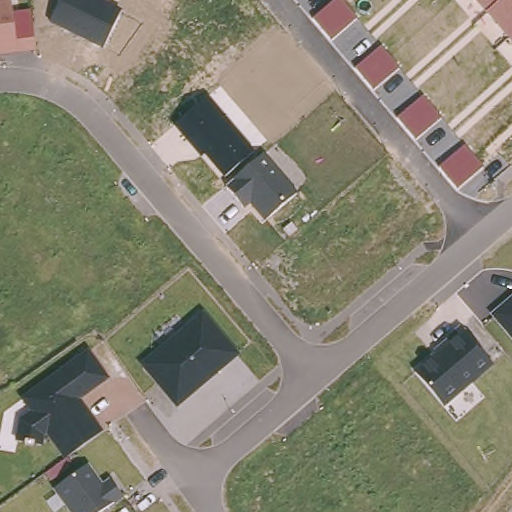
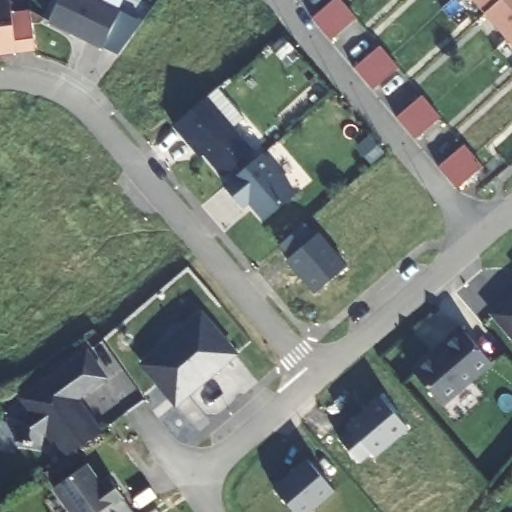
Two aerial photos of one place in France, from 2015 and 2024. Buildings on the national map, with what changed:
unchanged [(33,10),(37,51),(18,53),(18,54),(0,56),(0,0),(4,0),(12,0),(13,12),(33,10)]
unchanged [(102,46),(47,17),(58,0),(107,0),(123,7),(102,46)]
unchanged [(332,40),(313,18),(333,0),(343,0),(358,17),(332,40)]
unchanged [(512,0),(512,44),(474,0),(512,0)]
unchanged [(400,67),(374,90),(355,67),(381,45),(400,67)]
unchanged [(253,152),(219,179),(171,121),(208,94),(253,152)]
unchanged [(442,117),(416,139),(397,117),(423,95),(442,117)]
unchanged [(484,166),(457,189),(438,167),(465,144),(484,166)]
unchanged [(298,192),(263,220),(251,202),(246,206),(229,184),(264,152),(298,192)]
new [(315,235),(320,231),(346,264),(315,292),(287,260),(290,257),(280,245),(307,222),(315,235)]
unchanged [(512,293),(512,335),(491,311),(512,293)]
unchanged [(179,407),(138,357),(197,306),(237,353),(179,407)]
unchanged [(445,404),(415,369),(462,329),(492,362),(445,404)]
unchanged [(76,397),(100,428),(65,454),(53,439),(20,435),(21,416),(30,411),(15,391),(85,342),(108,378),(76,397)]
new [(411,429),(376,458),(372,453),(360,463),(338,436),(351,427),(348,422),(382,395),(411,429)]
new [(336,491),(312,512),(295,512),(274,488),(307,460),(336,491)]
unchanged [(87,462),(100,484),(111,477),(123,498),(101,512),(72,512),(54,484),(87,462)]

